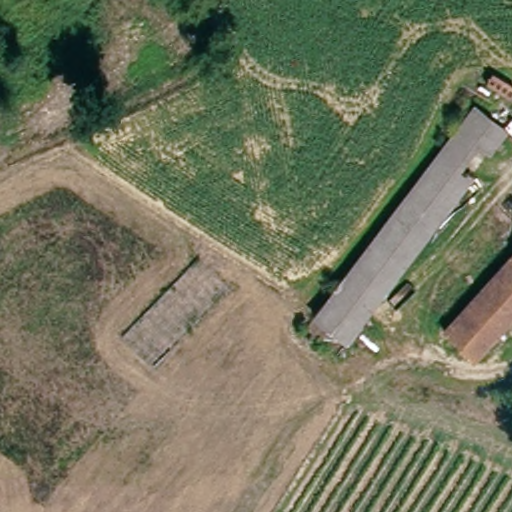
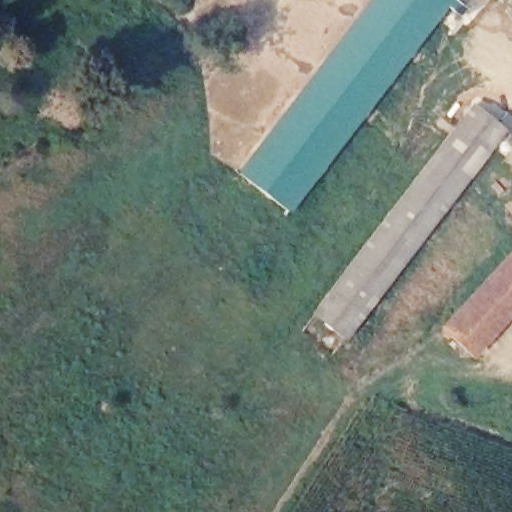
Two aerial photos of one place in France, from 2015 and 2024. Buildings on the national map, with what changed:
new [(370,0),(453,0),(287,214),(236,172),(370,0)]
unchanged [(477,105),(511,134),(349,342),(314,316),(477,105)]
unchanged [(512,321),(480,355),(449,327),(512,259),(512,321)]

